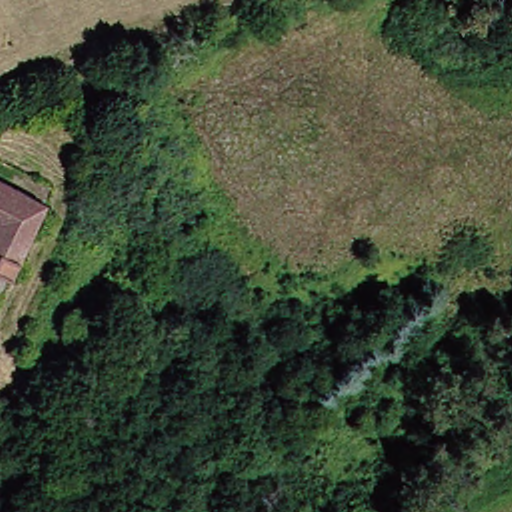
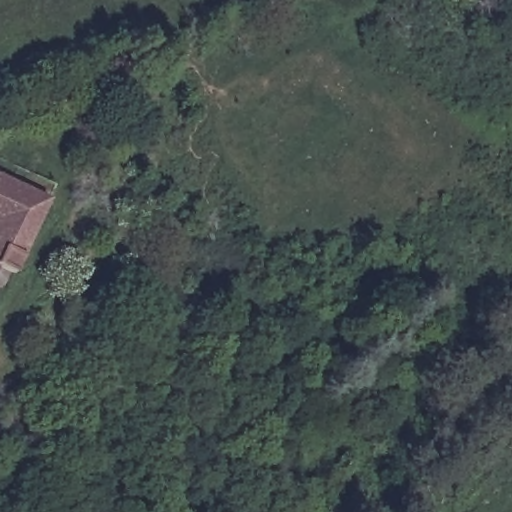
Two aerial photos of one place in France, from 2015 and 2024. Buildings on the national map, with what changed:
unchanged [(10,288),(0,283),(0,194),(40,214),(10,288)]

